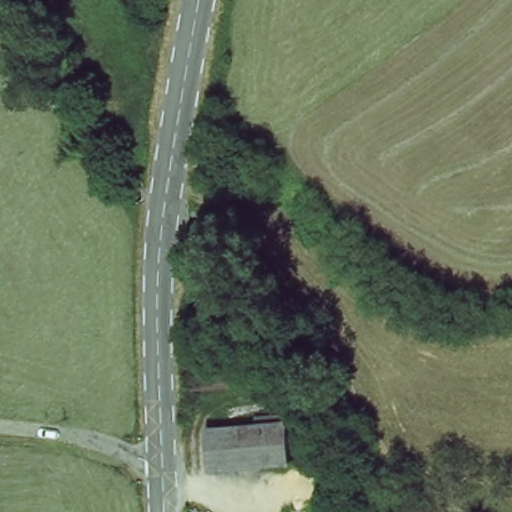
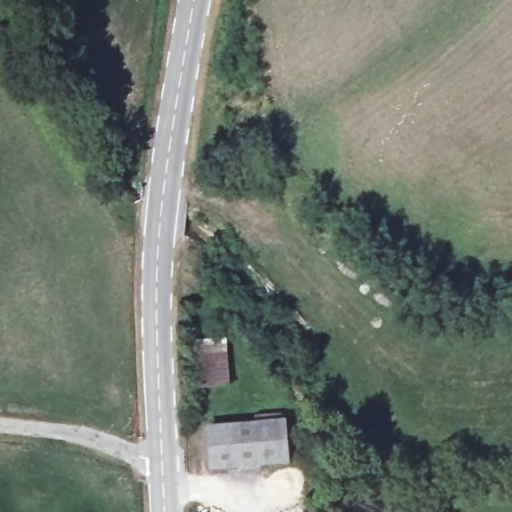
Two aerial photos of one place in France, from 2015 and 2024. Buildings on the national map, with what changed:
unchanged [(189,392),(187,362),(225,356),(231,387),(189,392)]
unchanged [(209,473),(209,430),(253,428),(253,419),(285,419),(284,471),(209,473)]

